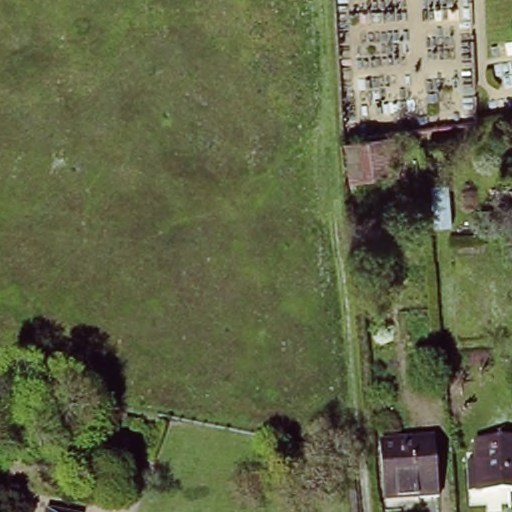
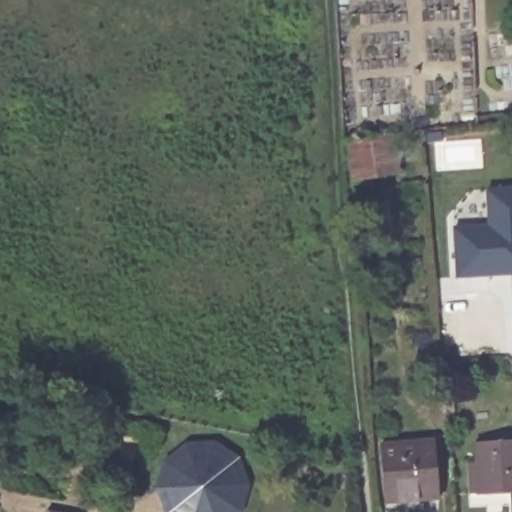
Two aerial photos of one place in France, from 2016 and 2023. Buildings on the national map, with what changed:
new [(402,156),(396,174),(350,178),(346,138),(397,133),(402,156)]
demolished [(433,230),(430,184),(451,185),(456,228),(433,230)]
new [(511,274),(456,278),(453,225),(487,223),(484,187),(512,186),(512,265),(511,265),(511,274)]
unchanged [(441,493),(387,496),(382,440),(436,435),(441,493)]
new [(249,485),(241,511),(240,512),(163,512),(156,488),(165,458),(187,440),(215,440),(239,457),(249,485)]
unchanged [(485,494),(482,443),(512,441),(512,493),(485,494)]
unchanged [(45,509),(57,512),(44,512),(45,509)]

